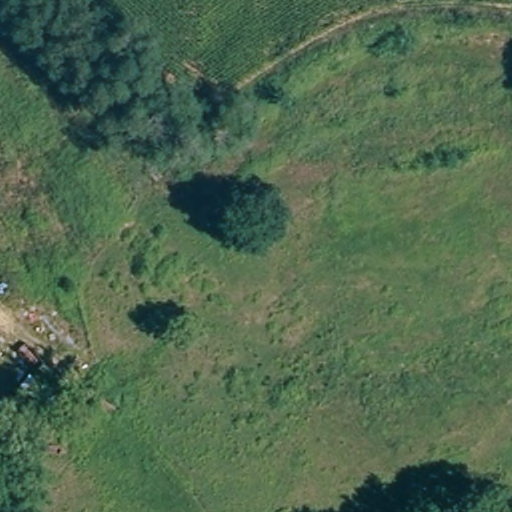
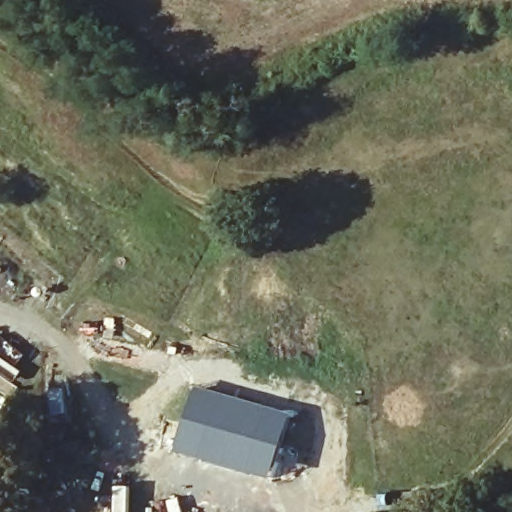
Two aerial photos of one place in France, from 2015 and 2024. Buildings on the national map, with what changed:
new [(198,386),(293,414),(273,480),(178,452),(198,386)]

